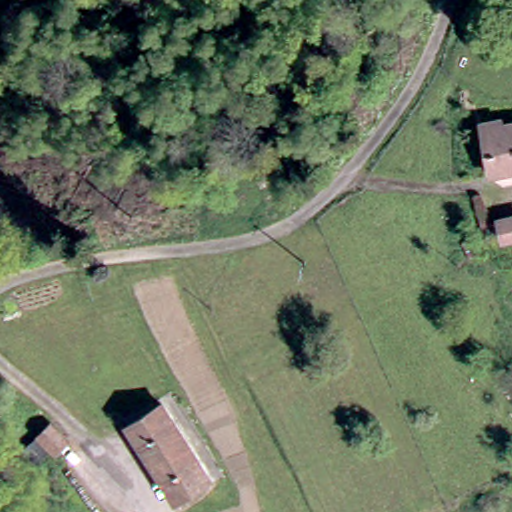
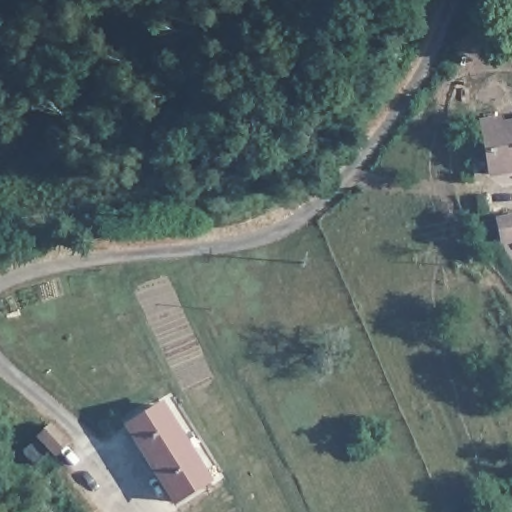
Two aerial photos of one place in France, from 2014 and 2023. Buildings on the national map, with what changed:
unchanged [(490,134),(485,112),(508,106),(512,122),(512,177),(498,180),(490,134)]
unchanged [(497,223),(512,221),(512,239),(500,241),(497,223)]
unchanged [(162,404),(208,481),(175,502),(127,426),(162,404)]
unchanged [(21,448),(35,435),(54,454),(41,466),(21,448)]

